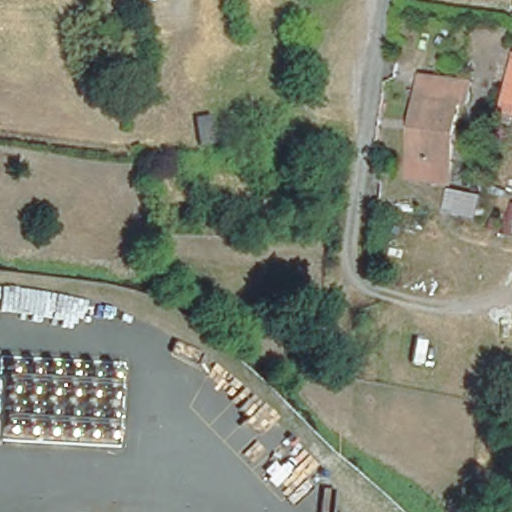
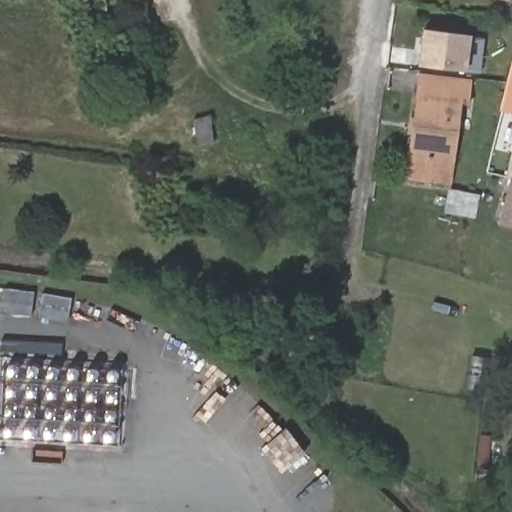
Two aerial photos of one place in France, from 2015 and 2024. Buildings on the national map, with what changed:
new [(470,35),(470,36),(484,38),(480,73),(465,71),(417,64),(421,29),(470,35)]
unchanged [(501,115),(512,72),(512,117),(501,115)]
unchanged [(416,139),(424,76),(474,84),(470,106),(459,104),(448,184),(410,179),(416,139)]
unchanged [(209,114),(214,145),(193,149),(188,117),(209,114)]
new [(498,224),(509,179),(506,178),(509,163),(512,153),(512,228),(498,224)]
unchanged [(473,222),(443,216),(447,192),(478,197),(473,222)]

